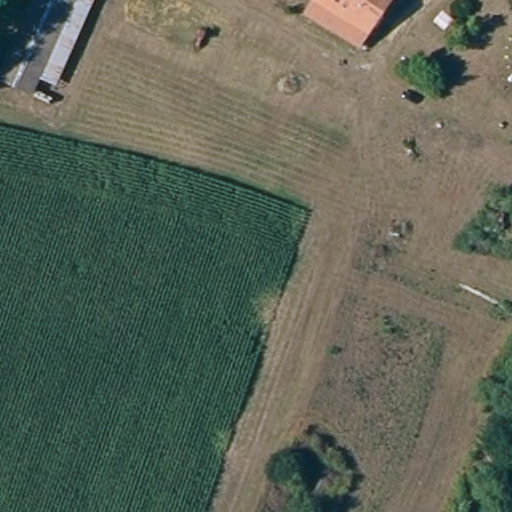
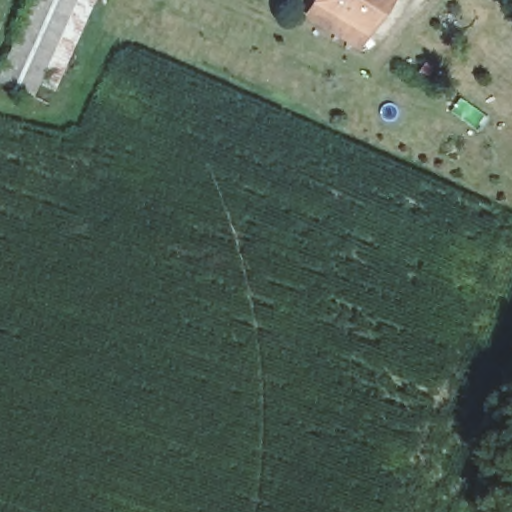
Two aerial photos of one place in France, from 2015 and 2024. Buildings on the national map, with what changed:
unchanged [(0,84),(0,60),(26,0),(94,0),(46,106),(0,84)]
unchanged [(368,28),(357,47),(304,16),(313,0),(319,0),(368,28)]
unchanged [(319,0),(385,0),(368,28),(319,0)]

